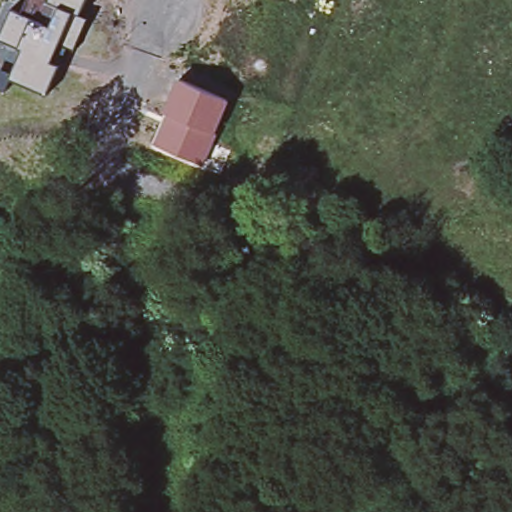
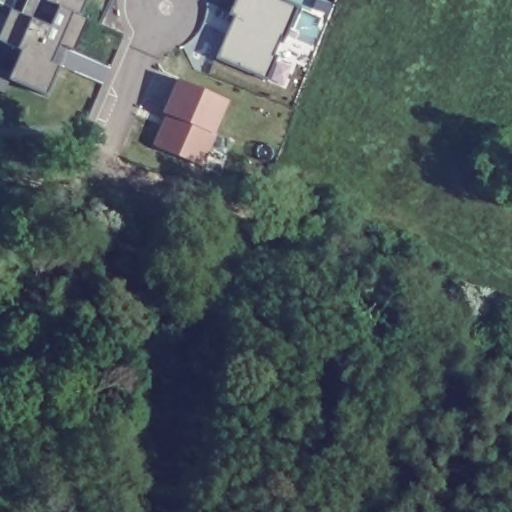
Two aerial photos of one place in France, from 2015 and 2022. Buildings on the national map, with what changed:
unchanged [(11,79),(5,93),(0,91),(0,71),(11,76),(22,50),(18,49),(0,42),(0,37),(11,10),(21,14),(27,0),(86,0),(80,15),(87,19),(73,50),(60,44),(51,63),(60,67),(45,95),(11,79)]
new [(236,17),(230,15),(237,0),(284,0),(297,6),(285,38),(267,78),(218,58),(236,17)]
unchanged [(166,114),(163,113),(176,80),(229,102),(216,135),(203,166),(154,146),(166,114)]

